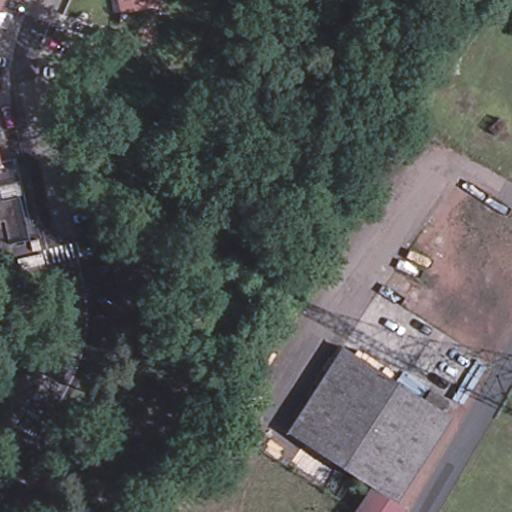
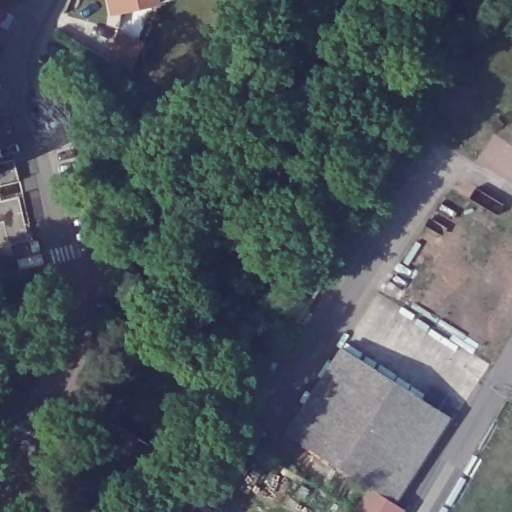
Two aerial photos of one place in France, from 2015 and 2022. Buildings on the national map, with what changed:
unchanged [(0,14),(0,0),(6,0),(0,14)]
unchanged [(121,39),(148,51),(140,66),(114,55),(121,39)]
unchanged [(18,167),(23,188),(0,194),(4,209),(23,204),(34,246),(33,247),(15,251),(18,262),(0,268),(0,169),(0,171),(18,167)]
unchanged [(296,438),(348,355),(426,405),(433,395),(453,409),(447,418),(460,427),(406,509),(408,511),(407,512),(366,512),(374,499),(379,492),(296,438)]

